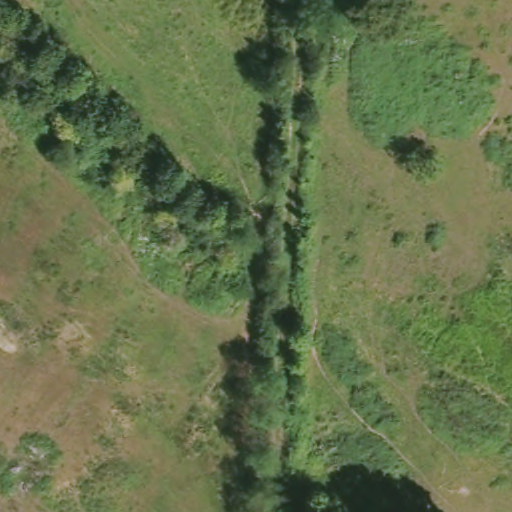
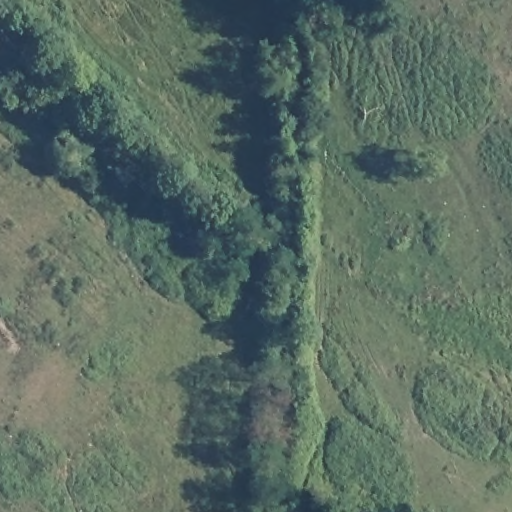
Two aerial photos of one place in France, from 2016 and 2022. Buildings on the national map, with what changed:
[]

